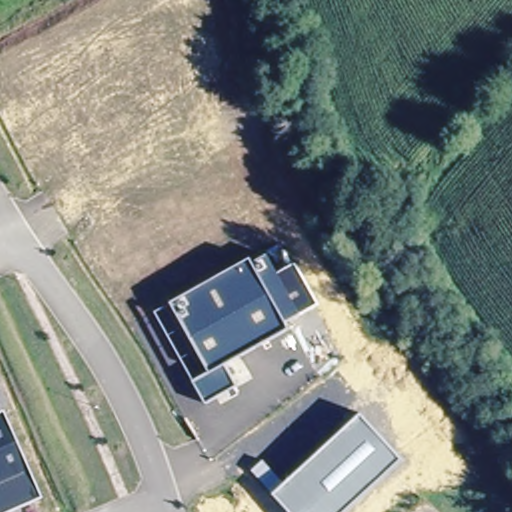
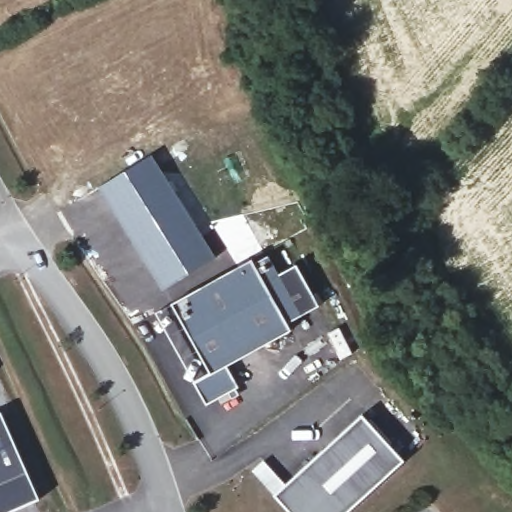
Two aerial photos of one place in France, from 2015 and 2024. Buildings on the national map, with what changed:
new [(152,153),(217,256),(163,290),(98,186),(152,153)]
unchanged [(268,256),(286,245),(319,305),(301,315),(268,256)]
unchanged [(254,263),(268,256),(301,315),(288,322),(254,263)]
unchanged [(254,263),(288,322),(291,329),(227,365),(239,387),(207,405),(194,381),(210,372),(172,303),(252,258),(254,263)]
unchanged [(157,313),(172,303),(210,372),(194,381),(157,313)]
unchanged [(40,499),(11,512),(0,512),(0,412),(1,412),(40,499)]
unchanged [(404,458),(345,512),(291,512),(276,494),(362,414),(404,458)]

